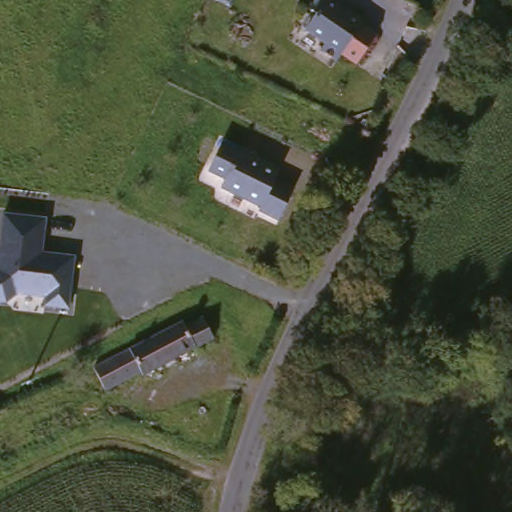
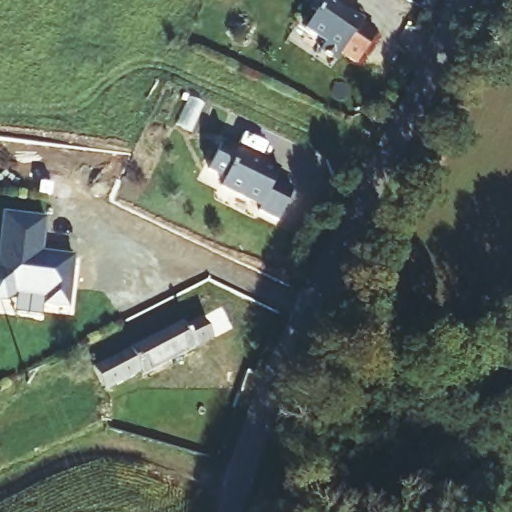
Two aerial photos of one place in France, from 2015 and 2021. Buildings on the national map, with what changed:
unchanged [(305,26),(322,0),(337,0),(382,28),(359,67),(321,46),(325,39),(305,26)]
unchanged [(278,177),(273,187),(291,198),(274,227),(256,217),(259,212),(219,189),(224,181),(208,172),(222,147),(238,156),(239,154),(278,177)]
unchanged [(68,310),(43,308),(44,299),(14,295),(4,305),(0,304),(0,240),(4,215),(46,220),(43,255),(73,259),(68,310)]
unchanged [(171,329),(174,337),(178,335),(195,328),(203,347),(117,384),(109,364),(106,356),(171,329)]

